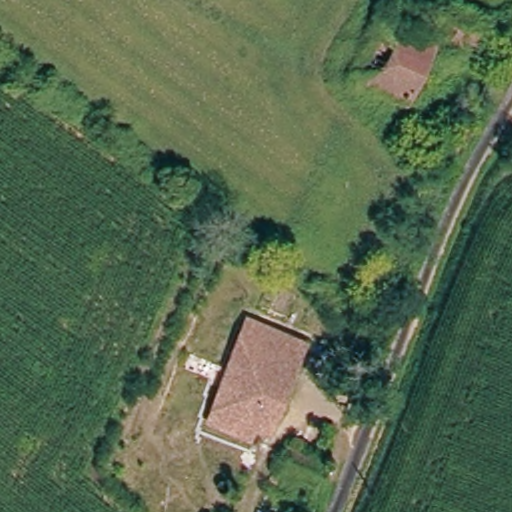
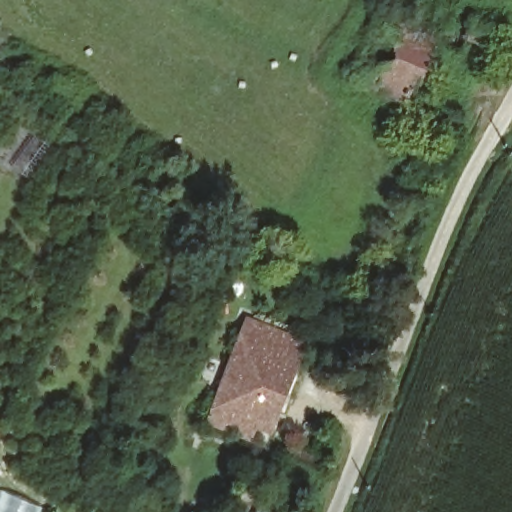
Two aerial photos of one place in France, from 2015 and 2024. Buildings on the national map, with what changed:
unchanged [(444,42),(440,41),(457,4),(490,18),(482,41),(471,37),(464,58),(442,50),(444,42)]
unchanged [(355,79),(378,21),(440,41),(444,42),(442,50),(438,61),(427,57),(408,102),(369,85),(355,79)]
unchanged [(199,418),(235,316),(293,339),(258,422),(246,418),(240,433),(199,418)]
unchanged [(271,461),(276,449),(310,460),(307,473),(271,461)]
new [(42,509),(42,512),(0,512),(0,492),(42,509)]

